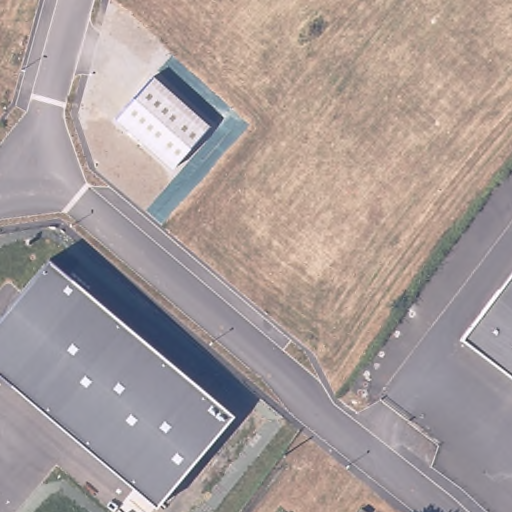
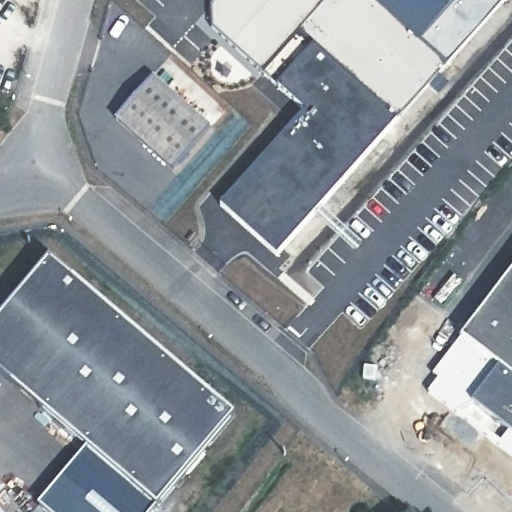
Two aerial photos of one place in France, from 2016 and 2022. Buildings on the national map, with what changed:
new [(275,256),(219,206),(303,111),(274,85),(212,27),(210,5),(215,0),(377,0),(419,37),(450,0),(502,0),(439,71),(451,81),(439,94),(429,85),(399,119),(275,256)]
new [(419,37),(377,0),(450,0),(419,37)]
unchanged [(210,127),(172,172),(115,120),(154,77),(210,127)]
unchanged [(155,508),(0,376),(0,319),(49,260),(234,415),(155,508)]
unchanged [(512,278),(512,375),(466,340),(512,278)]

